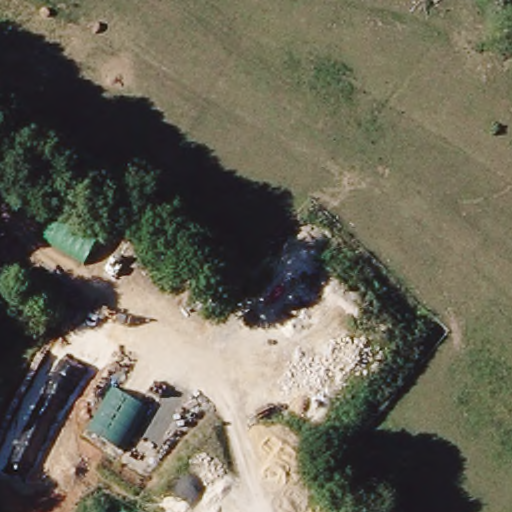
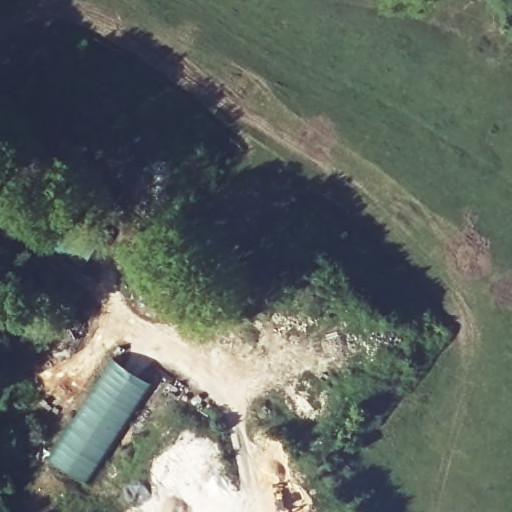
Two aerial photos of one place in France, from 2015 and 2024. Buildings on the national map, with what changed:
unchanged [(41,242),(60,211),(102,237),(85,268),(41,242)]
new [(151,380),(86,481),(49,459),(113,358),(151,380)]
new [(352,409),(327,440),(288,407),(313,377),(352,409)]
demolished [(146,406),(120,451),(88,432),(114,387),(146,406)]

